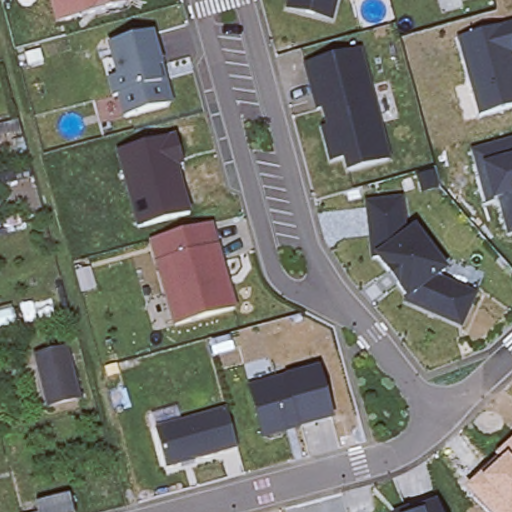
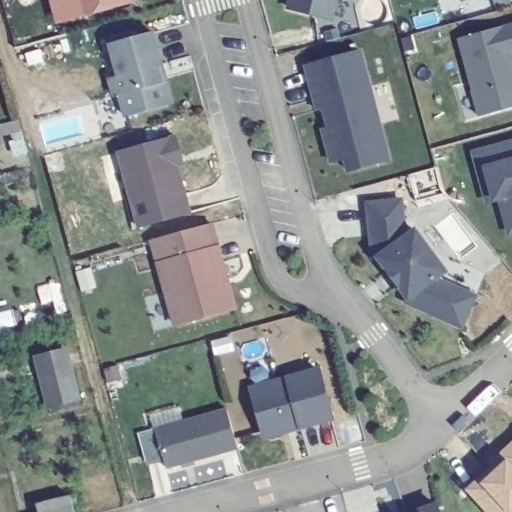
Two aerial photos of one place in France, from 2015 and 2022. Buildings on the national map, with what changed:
unchanged [(121,7),(55,25),(48,0),(124,0),(121,7)]
unchanged [(329,18),(284,7),(286,0),(332,0),(329,18)]
unchanged [(512,24),(512,107),(478,117),(458,39),(512,24)]
unchanged [(171,99),(167,106),(125,116),(120,95),(115,96),(110,78),(119,76),(110,44),(154,33),(163,66),(168,86),(171,99)]
unchanged [(362,50),(390,160),(349,169),(346,157),(332,160),(323,126),(329,125),(325,107),(319,108),(316,98),(307,63),(362,50)]
unchanged [(10,135),(6,124),(20,120),(22,132),(10,135)]
unchanged [(117,153),(174,137),(195,216),(138,229),(117,153)]
unchanged [(493,202),(484,204),(472,150),(512,139),(512,235),(509,236),(500,200),(493,202)]
unchanged [(401,199),(405,230),(409,235),(415,229),(444,268),(437,273),(442,281),(476,296),(462,326),(407,301),(409,297),(379,256),(374,257),(368,203),(401,199)]
unchanged [(219,248),(230,289),(235,309),(176,325),(153,239),(212,223),(219,248)]
unchanged [(14,310),(17,325),(0,328),(0,313),(14,310)]
unchanged [(80,398),(51,406),(37,357),(65,349),(80,398)]
unchanged [(246,385),(320,366),(335,420),(262,439),(246,385)]
unchanged [(239,449),(168,468),(157,429),(228,409),(239,449)]
unchanged [(497,459),(495,457),(512,441),(512,512),(487,512),(466,489),(497,459)]
unchanged [(71,497),(74,512),(38,512),(37,505),(71,497)]
unchanged [(442,512),(417,512),(439,504),(442,512)]

